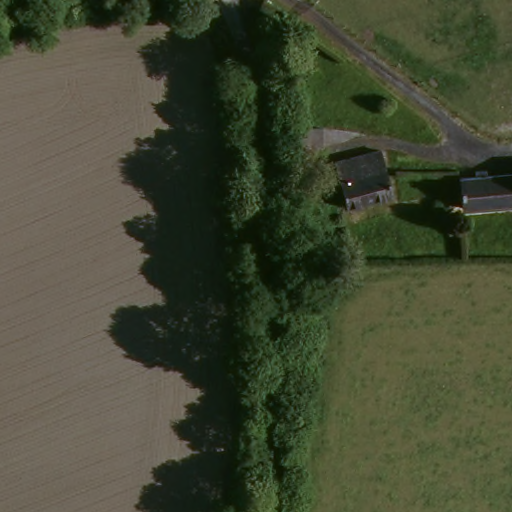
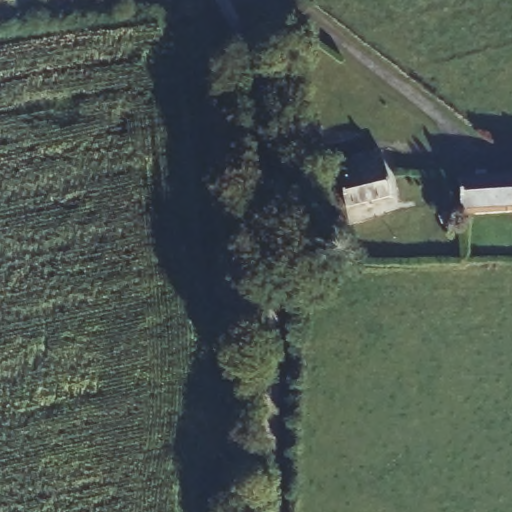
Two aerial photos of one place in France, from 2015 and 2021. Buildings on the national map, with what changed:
unchanged [(285,130),(292,106),(317,113),(311,136),(285,130)]
unchanged [(376,149),(385,199),(337,208),(328,158),(376,149)]
unchanged [(484,177),(512,175),(512,208),(486,208),(455,210),(453,178),(484,177)]

